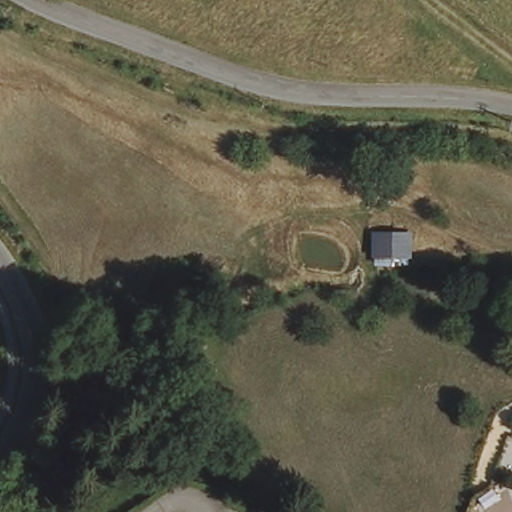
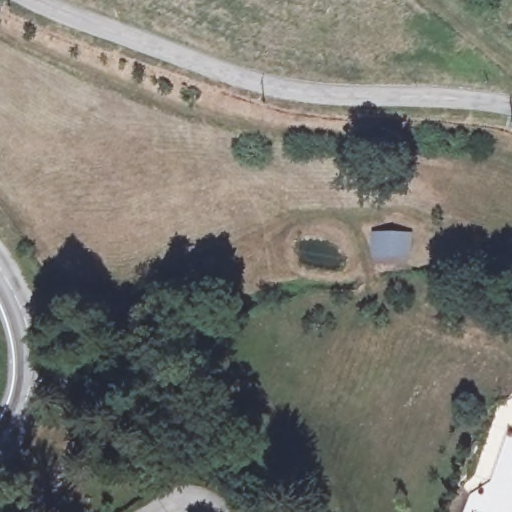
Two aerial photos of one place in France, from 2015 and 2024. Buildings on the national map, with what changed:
unchanged [(414,233),(409,267),(371,265),(372,231),(414,233)]

